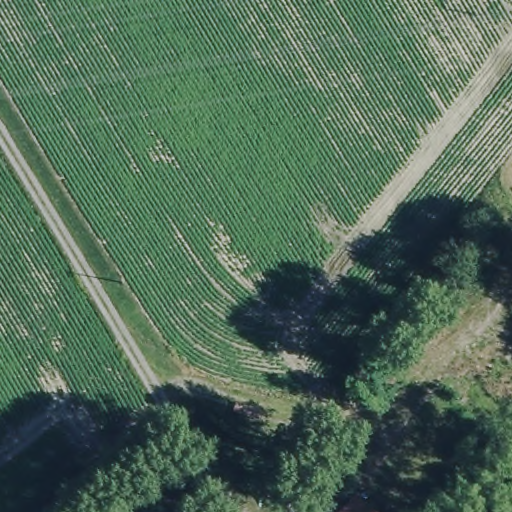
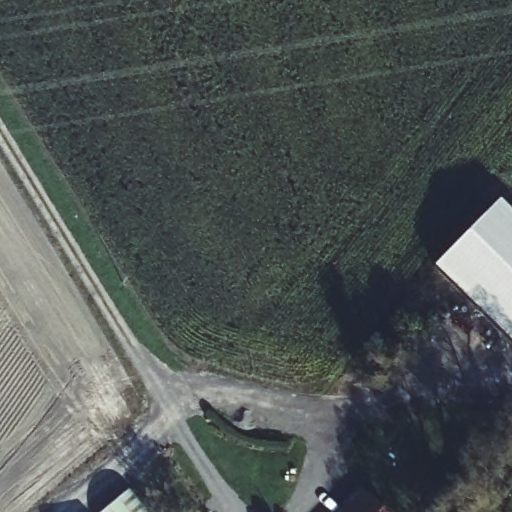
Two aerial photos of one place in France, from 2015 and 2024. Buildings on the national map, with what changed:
new [(512,215),(512,346),(433,268),(498,202),(512,215)]
unchanged [(141,512),(100,512),(123,492),(141,512)]
unchanged [(350,498),(366,512),(337,512),(350,498)]

